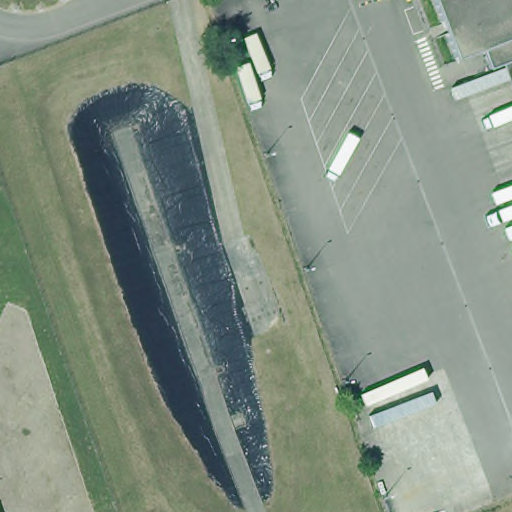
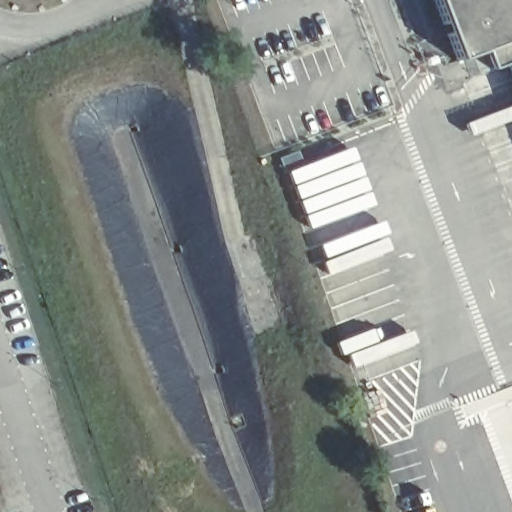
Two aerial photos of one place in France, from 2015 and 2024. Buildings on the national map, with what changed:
unchanged [(480,48),(453,58),(443,31),(449,29),(445,19),(439,22),(431,0),(512,0),(512,57),(487,66),(480,48)]

